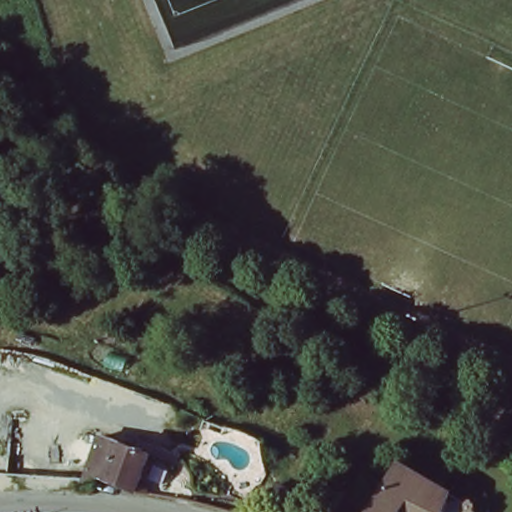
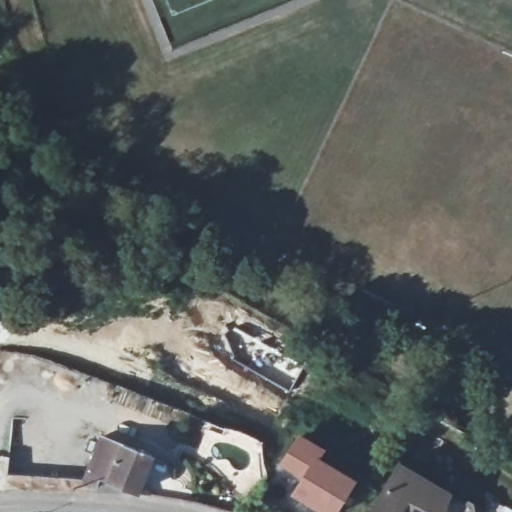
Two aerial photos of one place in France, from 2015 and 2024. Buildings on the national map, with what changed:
new [(326,448),(321,456),(357,478),(337,512),(318,512),(288,493),(299,478),(278,465),(298,431),(326,448)]
unchanged [(102,435),(152,455),(139,491),(98,475),(95,486),(84,485),(102,435)]
unchanged [(439,512),(424,512),(404,501),(398,512),(369,512),(399,461),(451,488),(439,512)]

